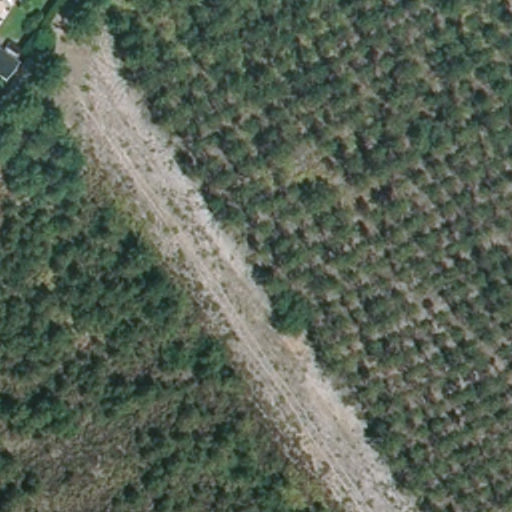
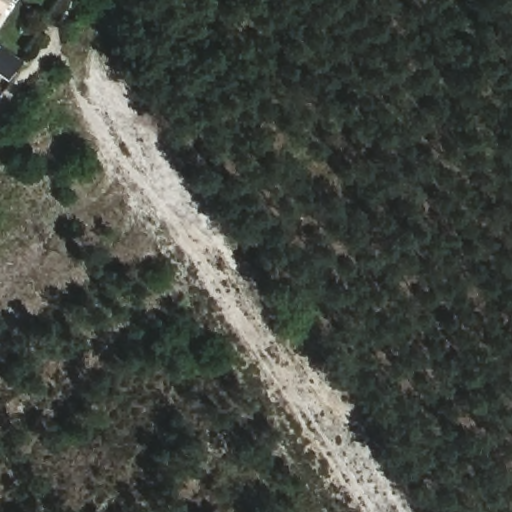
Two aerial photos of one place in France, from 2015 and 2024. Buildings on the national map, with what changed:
unchanged [(6,81),(0,77),(0,49),(19,62),(6,81)]

